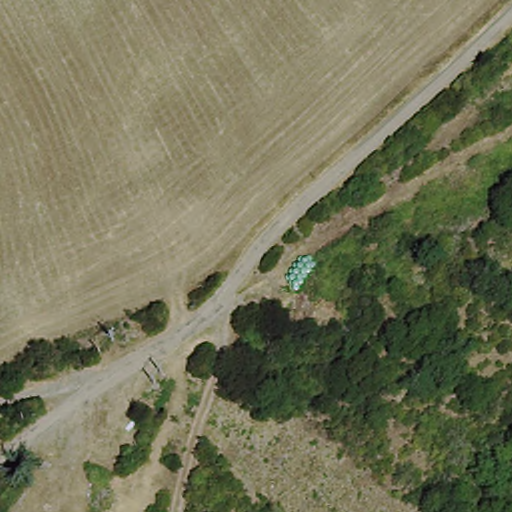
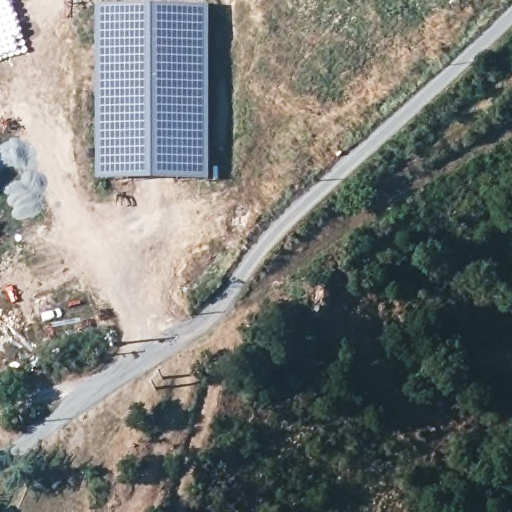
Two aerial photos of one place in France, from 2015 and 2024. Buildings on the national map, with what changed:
new [(209,6),(210,179),(98,182),(100,7),(209,6)]
unchanged [(102,356),(112,345),(124,360),(110,365),(102,356)]

